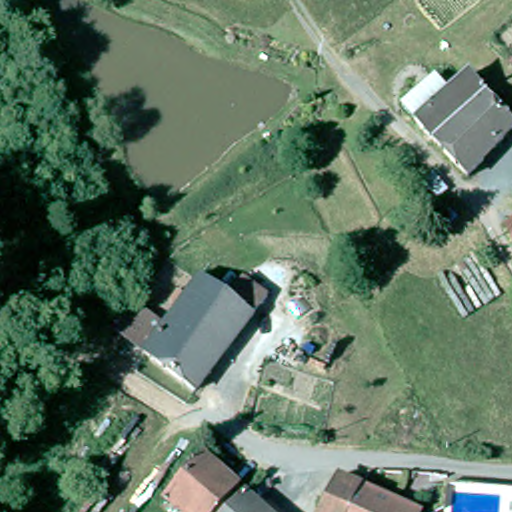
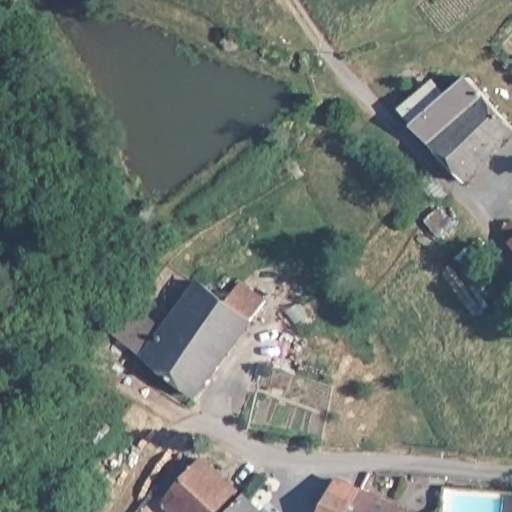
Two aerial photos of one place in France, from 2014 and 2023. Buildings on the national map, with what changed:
unchanged [(399,115),(414,99),(427,85),(437,94),(440,91),(445,97),(462,79),(512,126),(512,128),(466,178),(414,130),(399,115)]
unchanged [(512,230),(512,240),(507,234),(512,230)]
unchanged [(108,329),(129,301),(161,324),(191,283),(223,307),(234,293),(241,283),(265,301),(258,311),(197,393),(108,329)]
unchanged [(200,460),(238,492),(223,512),(171,512),(164,507),(200,460)]
unchanged [(357,481),(342,512),(318,512),(336,470),(357,481)]
unchanged [(417,512),(342,512),(357,481),(417,512)]
unchanged [(468,512),(473,481),(488,482),(512,486),(512,512),(468,512)]
unchanged [(262,512),(231,512),(244,496),(262,512)]

